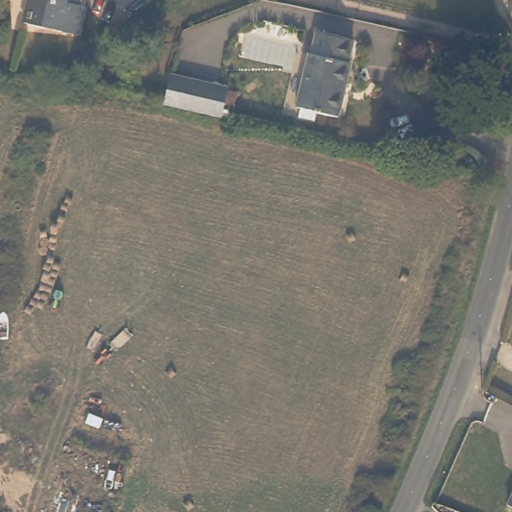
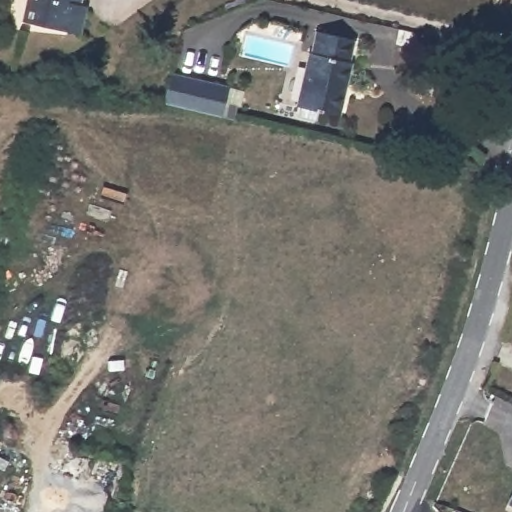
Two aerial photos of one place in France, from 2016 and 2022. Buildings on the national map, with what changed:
unchanged [(74,10),(80,12),(74,36),(19,22),(24,0),(74,0),(74,10)]
unchanged [(346,59),(348,63),(337,114),(317,112),(314,120),(300,118),(300,109),(296,108),(307,52),(312,53),(317,32),(351,39),(346,59)]
unchanged [(220,115),(214,114),(162,101),(170,72),(220,84),(226,85),(220,115)]
unchanged [(507,498),(512,490),(512,501),(507,498)]

